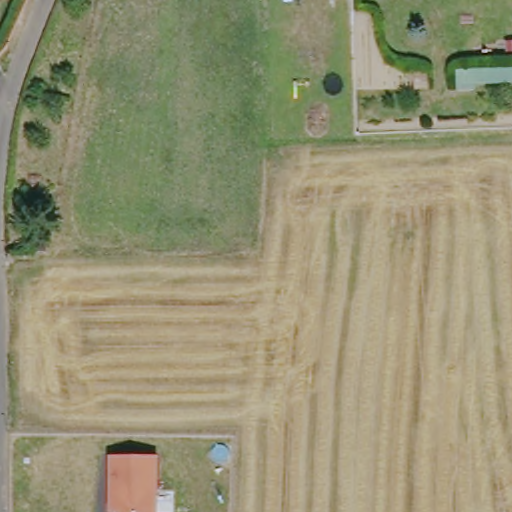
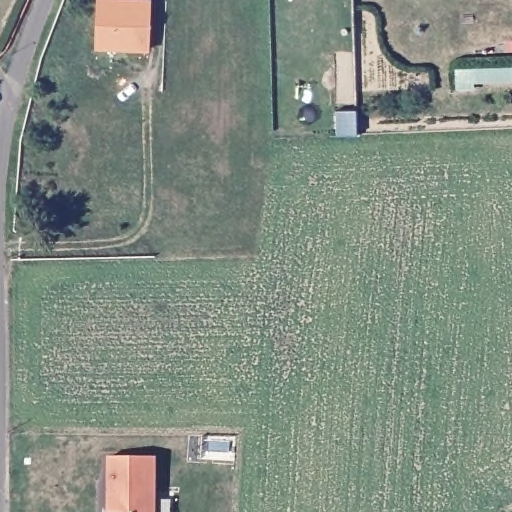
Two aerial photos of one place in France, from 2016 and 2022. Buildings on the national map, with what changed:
new [(97,0),(152,0),(156,39),(150,51),(95,49),(97,0)]
unchanged [(451,97),(450,73),(512,68),(512,85),(472,86),(472,96),(451,97)]
unchanged [(161,460),(160,512),(109,512),(109,460),(161,460)]

